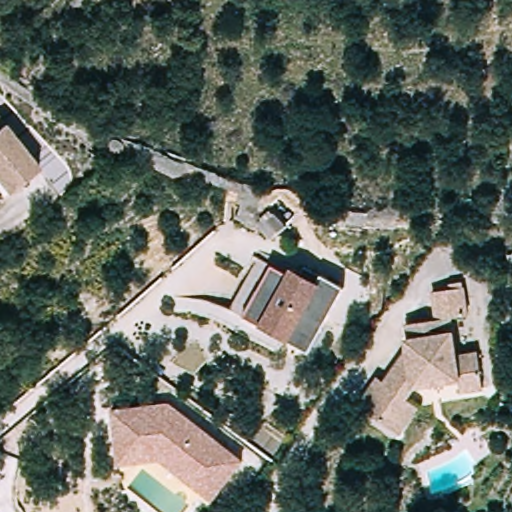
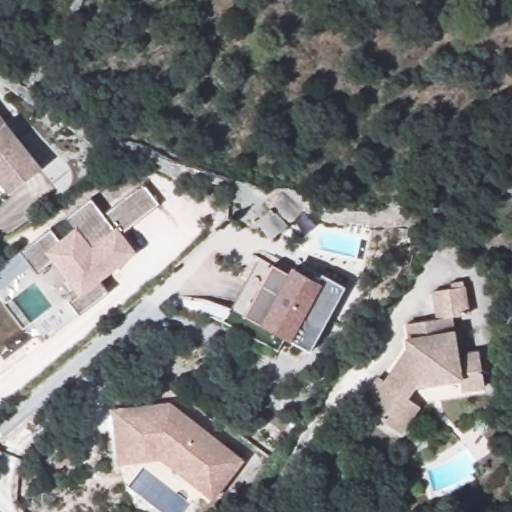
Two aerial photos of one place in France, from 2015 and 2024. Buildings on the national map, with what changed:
unchanged [(12,188),(0,173),(0,105),(46,162),(12,188)]
new [(143,185),(159,206),(123,235),(137,255),(100,282),(108,292),(79,313),(70,301),(78,295),(52,261),(37,274),(30,265),(0,289),(0,267),(20,252),(50,230),(58,241),(73,230),(65,219),(91,199),(104,215),(143,185)]
unchanged [(269,203),(290,225),(273,239),(261,227),(236,215),(243,195),(269,203)]
unchanged [(342,289),(306,355),(241,317),(277,251),(342,289)]
unchanged [(371,370),(377,374),(399,342),(398,331),(400,330),(400,318),(430,313),(425,286),(444,282),(443,277),(457,275),(464,308),(447,311),(452,346),(473,344),(479,382),(455,386),(452,375),(409,382),(402,392),(414,401),(410,408),(395,428),(352,397),(353,395),(371,370)]
unchanged [(112,409),(168,401),(240,459),(211,500),(159,457),(117,461),(112,409)]

